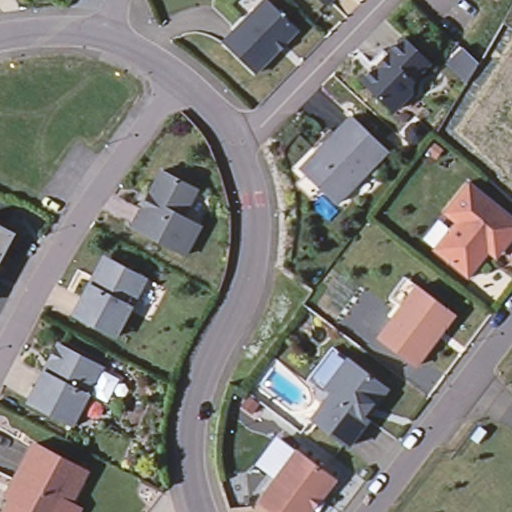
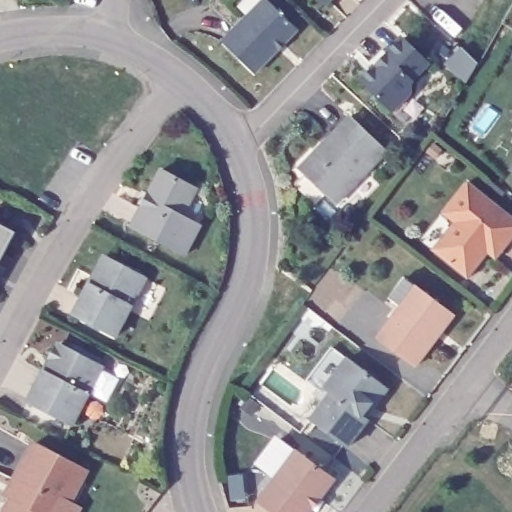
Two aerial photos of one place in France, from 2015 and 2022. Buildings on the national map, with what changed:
unchanged [(295,28),(252,73),(233,55),(220,42),(262,0),(265,0),(270,5),(295,28)]
unchanged [(388,109),(358,79),(366,72),(402,36),(427,61),(408,80),(408,90),(398,100),(388,109)]
unchanged [(480,66),(465,90),(444,65),(462,49),(480,66)]
unchanged [(298,165),(350,115),(385,149),(333,201),(298,165)]
unchanged [(140,201),(142,202),(149,190),(147,189),(159,165),(194,184),(180,211),(197,221),(182,250),(128,221),(140,201)]
unchanged [(512,165),(512,170),(510,169),(512,165)]
unchanged [(465,273),(430,246),(419,236),(440,209),(465,177),(512,213),(512,229),(502,243),(495,253),(485,246),(465,273)]
unchanged [(14,228),(0,254),(0,221),(14,228)]
unchanged [(110,252),(147,271),(116,330),(75,309),(90,278),(97,267),(103,255),(110,252)]
unchanged [(447,317),(442,325),(435,326),(429,334),(433,337),(413,364),(375,336),(397,305),(385,296),(400,276),(412,285),(447,310),(447,317)]
unchanged [(71,426),(27,399),(32,389),(7,378),(21,348),(48,364),(61,341),(100,362),(71,426)]
unchanged [(348,450),(310,417),(326,394),(307,378),(335,344),(390,381),(348,450)]
unchanged [(3,512),(10,496),(5,494),(9,486),(32,442),(39,446),(84,470),(67,503),(77,508),(74,512),(3,512)]
unchanged [(335,478),(311,512),(275,512),(260,502),(298,450),(335,478)]

